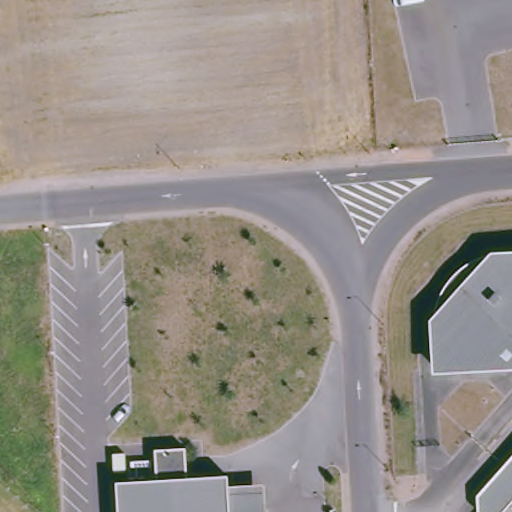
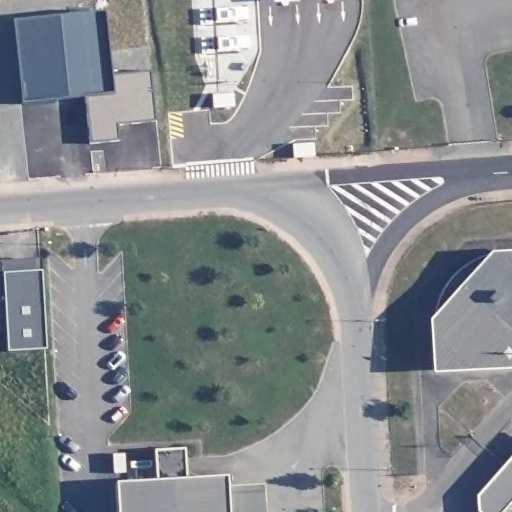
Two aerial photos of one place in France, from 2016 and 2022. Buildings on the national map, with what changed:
new [(103,16),(110,80),(151,76),(156,127),(117,131),(119,147),(89,150),(83,104),(19,111),(10,27),(103,16)]
new [(231,100),(232,112),(212,114),(211,101),(231,100)]
new [(314,144),(315,156),(296,158),(294,145),(314,144)]
unchanged [(433,373),(430,320),(437,313),(439,300),(444,289),(452,279),(461,270),(471,264),(483,262),(491,252),(512,252),(512,371),(433,373)]
new [(0,313),(0,261),(38,259),(40,270),(45,349),(8,351),(6,312),(0,313)]
unchanged [(118,483),(158,480),(156,452),(186,449),(188,479),(230,477),(231,490),(266,487),(267,512),(119,512),(118,483)]
unchanged [(472,505),(512,460),(512,498),(499,512),(472,512),(472,505)]

